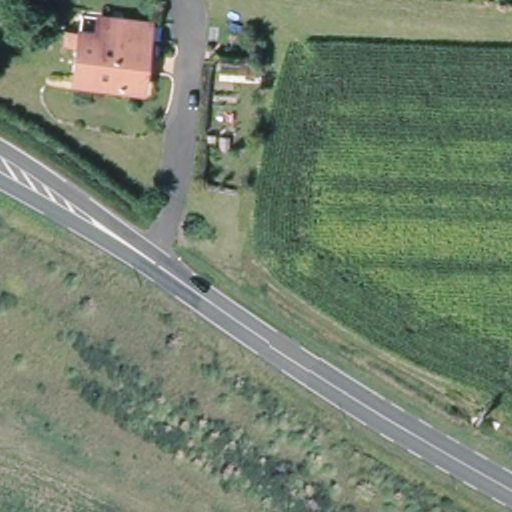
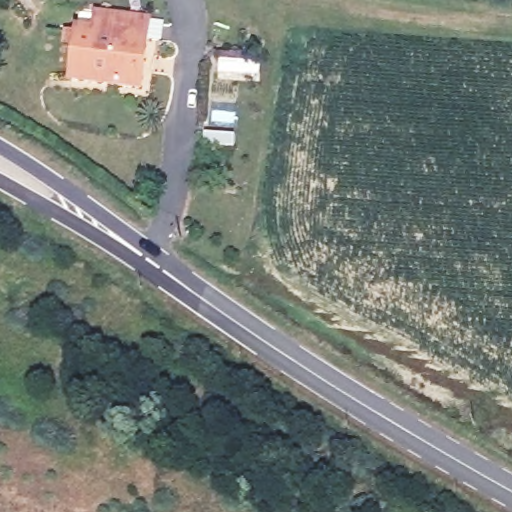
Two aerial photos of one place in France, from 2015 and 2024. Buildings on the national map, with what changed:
unchanged [(86,36),(105,38),(107,24),(153,29),(146,95),(80,85),(86,36)]

